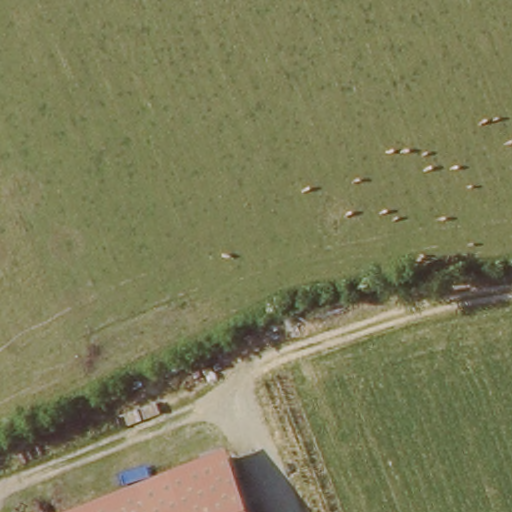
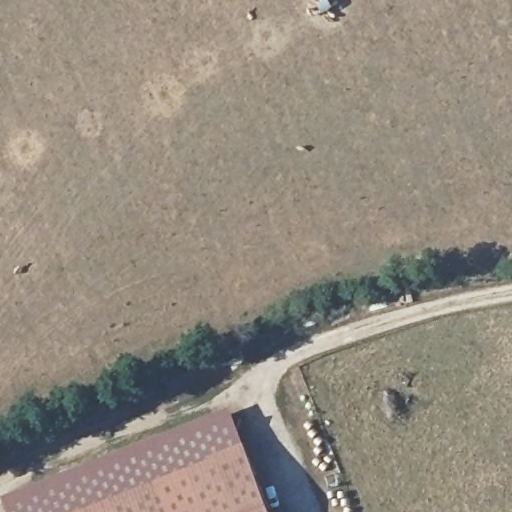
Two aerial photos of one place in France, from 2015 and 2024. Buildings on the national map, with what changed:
new [(90,512),(10,512),(5,499),(232,409),(248,452),(90,512)]
unchanged [(248,452),(272,512),(90,512),(248,452)]

